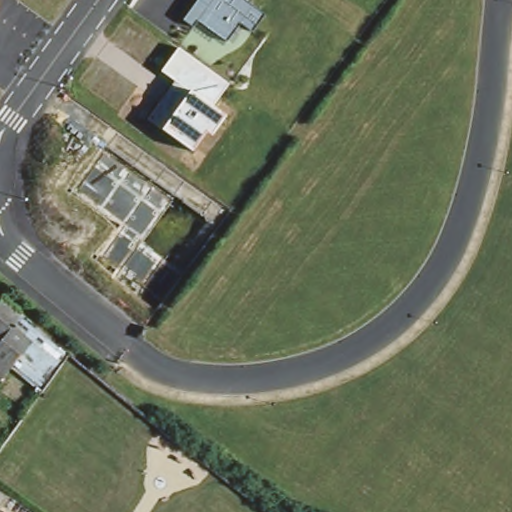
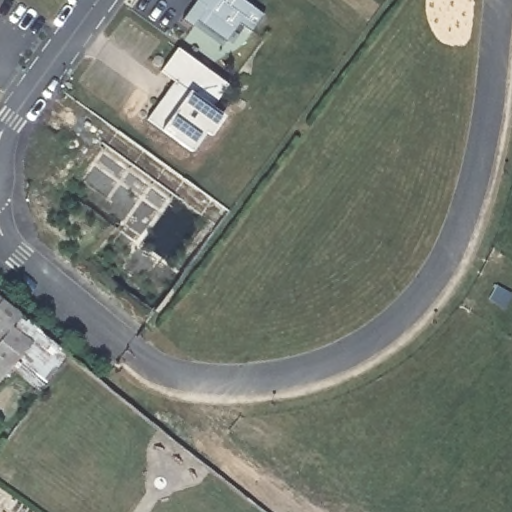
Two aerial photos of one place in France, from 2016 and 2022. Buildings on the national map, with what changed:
unchanged [(244,0),(265,15),(252,32),(239,24),(228,41),(198,19),(193,27),(182,20),(197,0),(244,0)]
unchanged [(147,127),(174,86),(159,73),(178,50),(231,88),(217,114),(224,119),(191,154),(147,127)]
unchanged [(27,321),(68,354),(42,391),(11,366),(0,378),(0,299),(27,321)]

